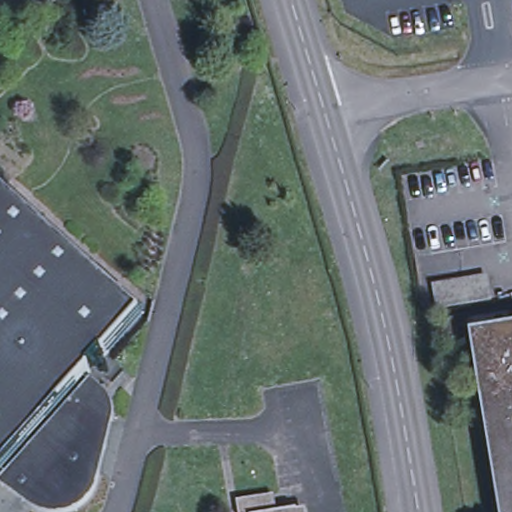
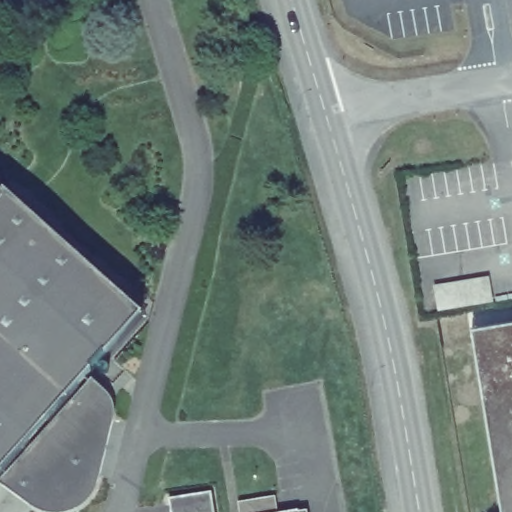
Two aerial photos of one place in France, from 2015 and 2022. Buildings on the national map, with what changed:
unchanged [(36,25),(15,7),(21,0),(58,0),(36,25)]
unchanged [(4,190),(142,313),(105,355),(102,353),(89,368),(91,370),(0,471),(0,190),(2,192),(4,190)]
unchanged [(505,512),(477,339),(512,332),(512,512),(505,512)]
unchanged [(113,400),(115,416),(95,492),(85,501),(74,506),(63,508),(47,507),(33,504),(0,481),(0,479),(92,377),(107,391),(113,400)]
new [(215,512),(171,512),(169,499),(212,492),(215,512)]
unchanged [(266,499),(268,512),(239,512),(238,503),(266,499)]
unchanged [(299,512),(288,512),(298,511),(299,512)]

